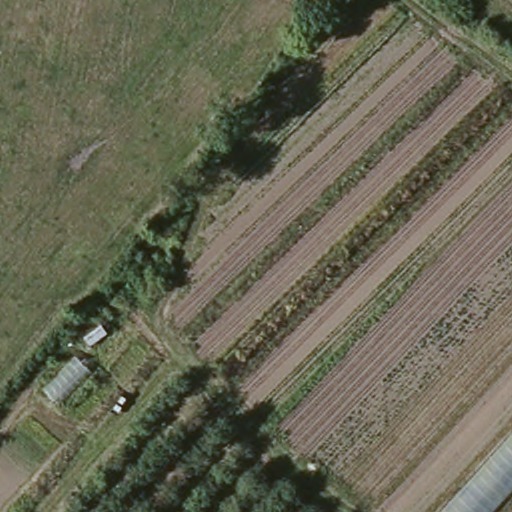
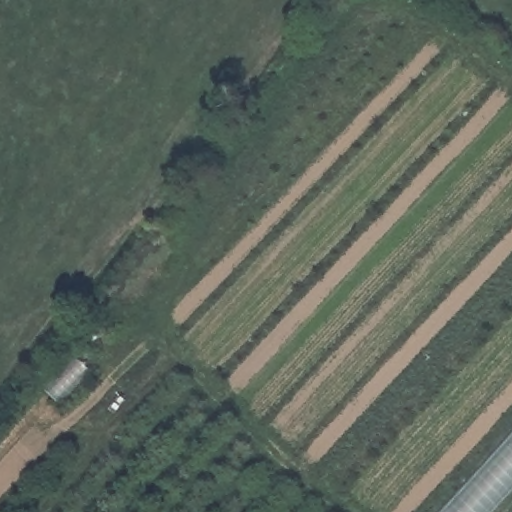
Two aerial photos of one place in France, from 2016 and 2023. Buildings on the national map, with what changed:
unchanged [(493,512),(440,512),(512,433),(512,491),(493,512)]

